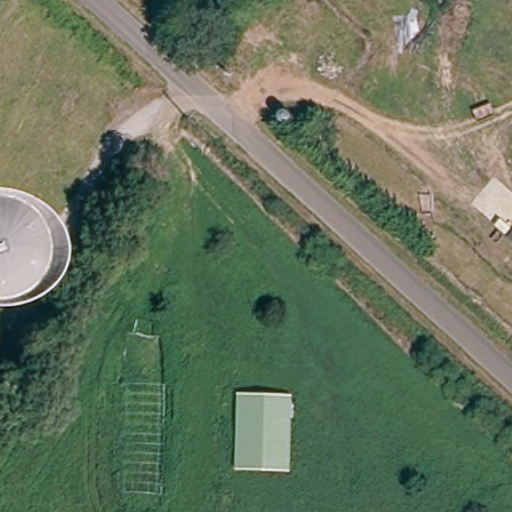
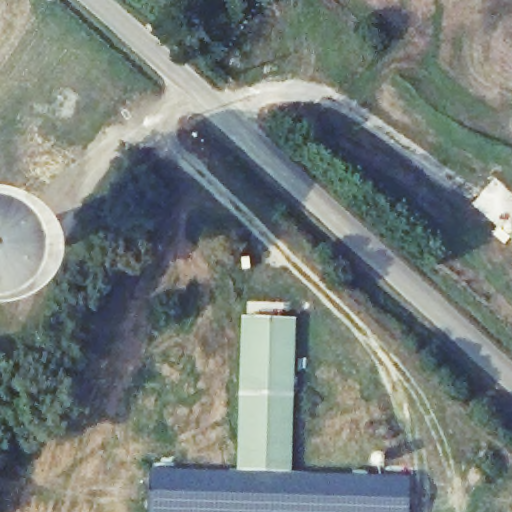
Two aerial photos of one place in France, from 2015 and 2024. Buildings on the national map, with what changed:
unchanged [(297,325),(292,464),(239,464),(242,318),(297,325)]
new [(238,472),(239,464),(292,464),(291,473),(408,476),(407,512),(147,512),(147,470),(238,472)]

